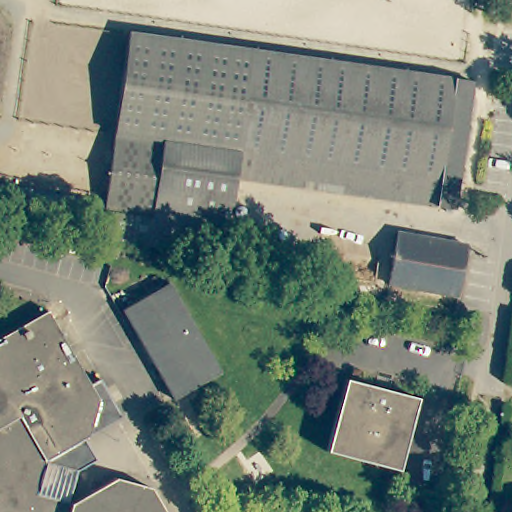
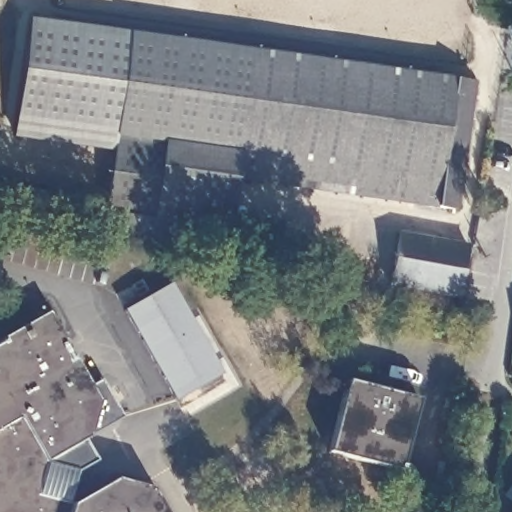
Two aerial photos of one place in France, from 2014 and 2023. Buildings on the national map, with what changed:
new [(28,21),(130,35),(113,151),(13,137),(28,21)]
unchanged [(130,35),(475,82),(458,208),(237,179),(230,229),(156,219),(108,212),(105,212),(130,35)]
unchanged [(467,246),(458,297),(390,285),(399,233),(467,246)]
unchanged [(223,373),(176,400),(124,310),(171,283),(223,373)]
unchanged [(50,312),(92,385),(101,380),(123,417),(91,435),(86,437),(74,505),(117,479),(153,488),(166,512),(0,512),(0,340),(50,312)]
unchanged [(419,400),(400,470),(328,451),(347,380),(419,400)]
new [(189,422),(242,391),(257,417),(204,447),(189,422)]

